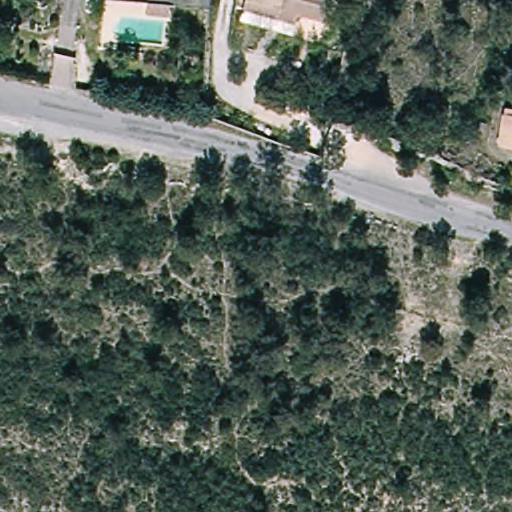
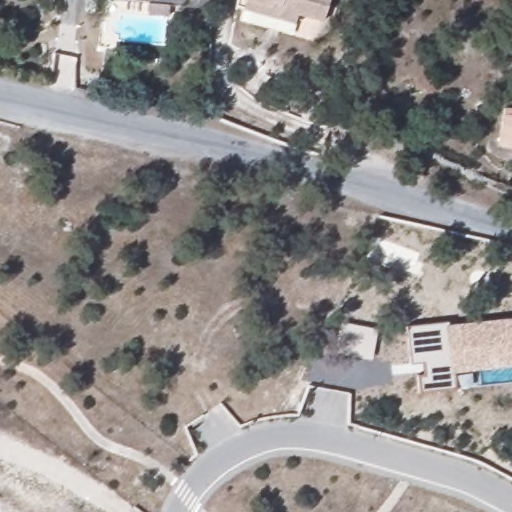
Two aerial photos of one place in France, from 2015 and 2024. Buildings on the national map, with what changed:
unchanged [(206,10),(143,6),(144,0),(207,0),(206,10)]
unchanged [(267,5),(246,0),(269,0),(267,5)]
unchanged [(320,18),(295,12),(293,23),(275,19),(280,0),(324,0),(320,18)]
unchanged [(499,151),(501,112),(512,113),(512,152),(499,151)]
new [(454,372),(456,388),(418,393),(415,374),(423,373),(422,363),(410,364),(406,325),(445,321),(446,325),(512,317),(512,365),(454,372)]

